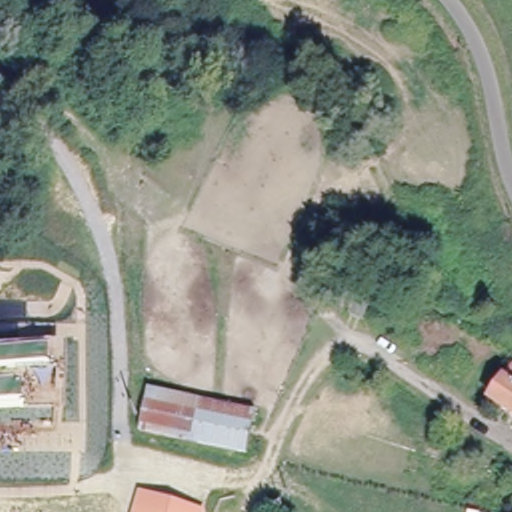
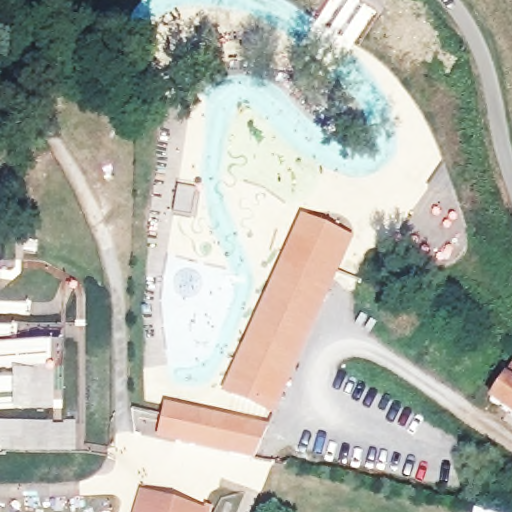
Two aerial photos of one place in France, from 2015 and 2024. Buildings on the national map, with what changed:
new [(353,237),(272,415),(220,393),(300,214),(353,237)]
demolished [(468,335),(463,345),(451,339),(456,328),(468,335)]
demolished [(492,348),(483,365),(467,355),(475,339),(492,348)]
unchanged [(505,382),(512,374),(512,413),(493,400),(505,382)]
new [(267,425),(255,460),(156,440),(164,402),(267,425)]
unchanged [(205,510),(204,512),(134,512),(140,491),(205,510)]

